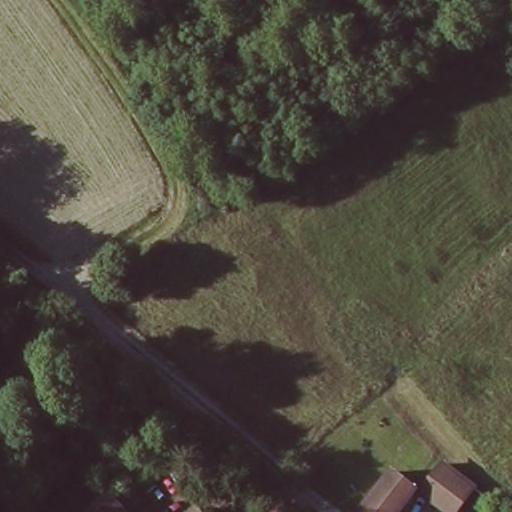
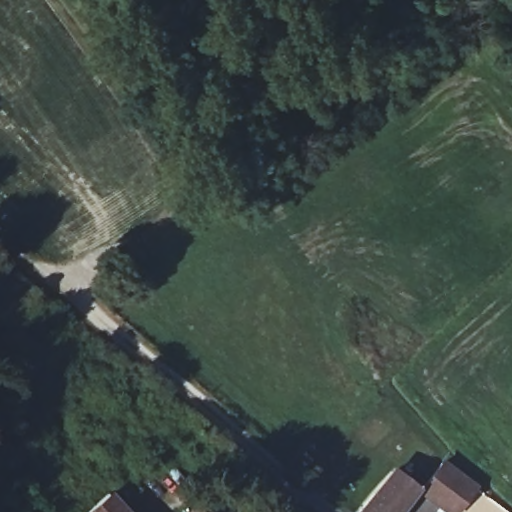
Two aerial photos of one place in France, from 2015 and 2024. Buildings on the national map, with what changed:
unchanged [(108,409),(158,456),(135,484),(132,479),(72,428),(82,414),(65,399),(78,384),(94,397),(104,406),(108,409)]
unchanged [(20,464),(0,444),(0,413),(5,407),(40,442),(20,464)]
unchanged [(422,444),(472,489),(450,512),(440,512),(413,486),(387,512),(351,512),(422,444)]
unchanged [(126,512),(85,512),(107,492),(126,512)]
unchanged [(198,509),(201,512),(196,512),(198,509)]

